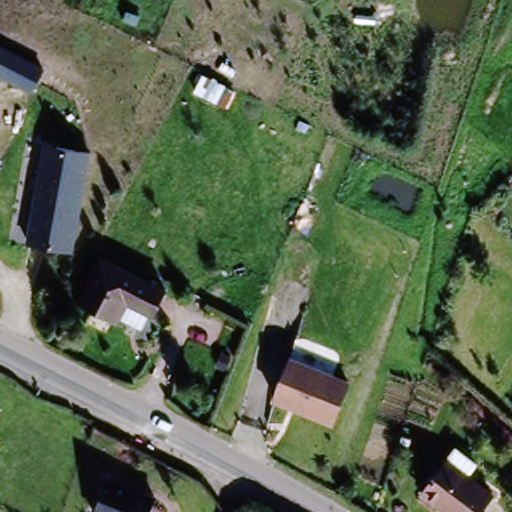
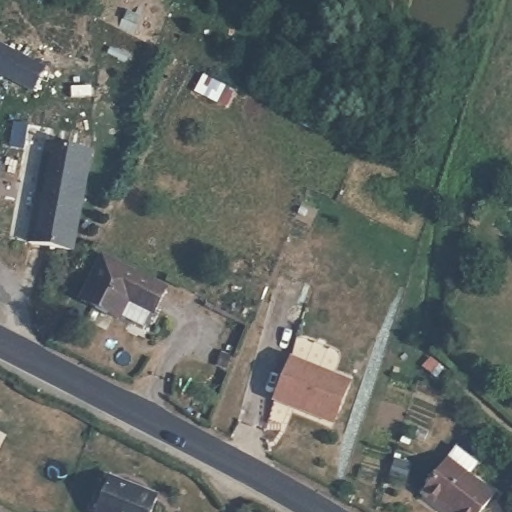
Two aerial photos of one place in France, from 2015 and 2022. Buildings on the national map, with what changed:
unchanged [(36,87),(0,71),(0,39),(50,61),(36,87)]
unchanged [(41,145),(82,152),(66,252),(26,244),(41,145)]
unchanged [(83,296),(103,256),(165,287),(145,327),(83,296)]
unchanged [(350,387),(335,431),(270,406),(286,365),(350,387)]
unchanged [(453,452),(473,468),(464,480),(489,500),(479,512),(436,512),(418,498),(443,465),(453,452)]
unchanged [(108,472),(156,488),(148,512),(94,512),(108,472)]

